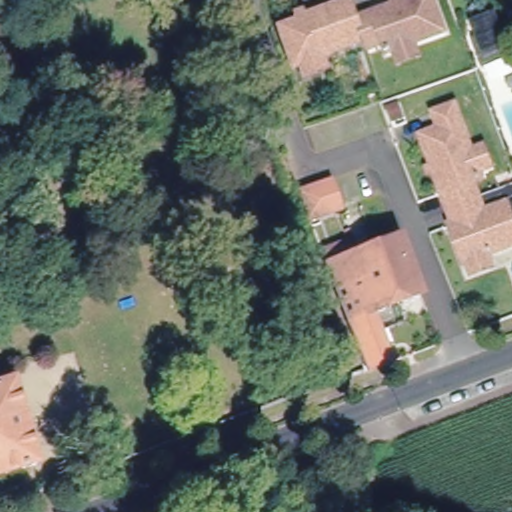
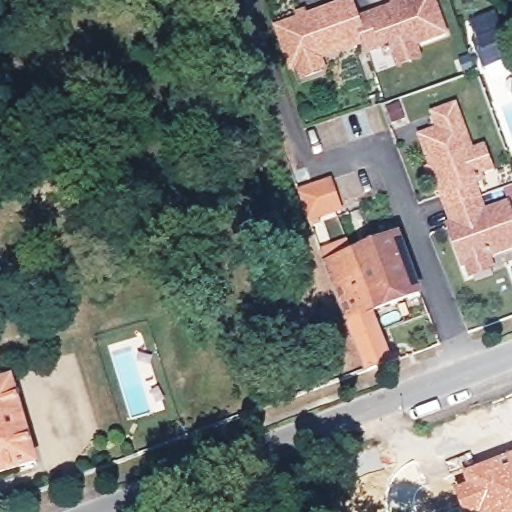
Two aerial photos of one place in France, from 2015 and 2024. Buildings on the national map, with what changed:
unchanged [(298,67),(283,27),(357,1),(364,20),(420,0),(440,0),(452,34),(421,45),(426,56),(405,64),(400,52),(393,55),(390,46),(376,52),(371,41),(326,57),(330,68),(309,76),(305,65),(298,67)]
unchanged [(478,43),(502,34),(510,58),(487,66),(478,43)]
unchanged [(465,265),(451,225),(454,224),(424,136),(442,130),(437,115),(457,106),(475,153),(486,149),(493,169),(482,174),(485,181),(476,184),(487,213),(509,205),(512,212),(512,249),(488,257),(493,269),(472,276),(468,264),(465,265)]
unchanged [(303,191),(334,180),(345,206),(313,218),(303,191)]
unchanged [(326,257),(351,247),(356,260),(404,242),(425,295),(378,314),(397,363),(368,373),(331,270),(326,257)]
unchanged [(37,465),(0,475),(0,389),(14,385),(37,465)]
new [(464,512),(457,493),(470,487),(465,475),(512,456),(512,512),(464,512)]

